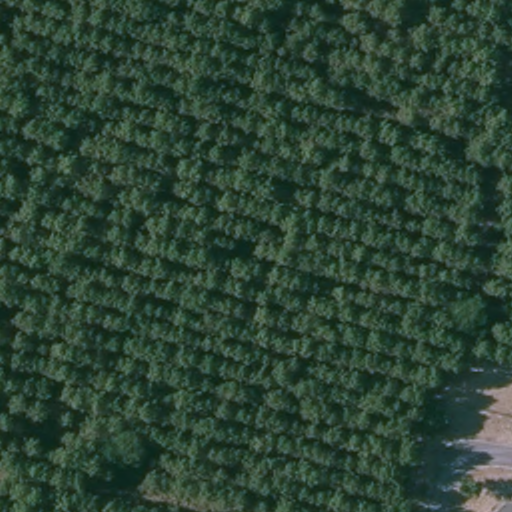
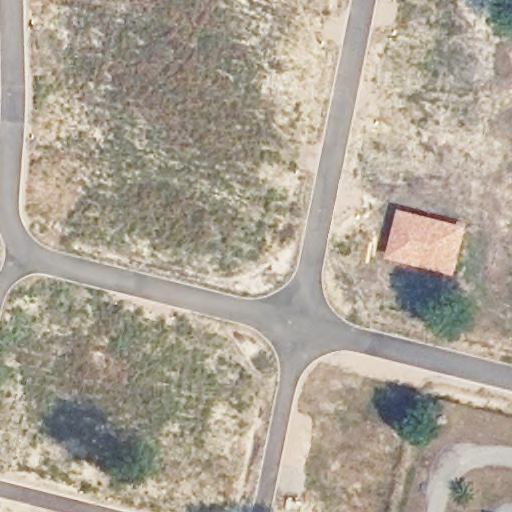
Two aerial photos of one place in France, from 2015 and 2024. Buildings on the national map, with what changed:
new [(470,228),(458,278),(389,261),(401,211),(470,228)]

